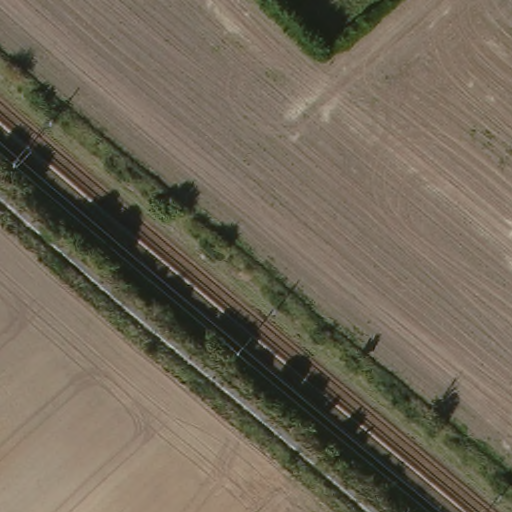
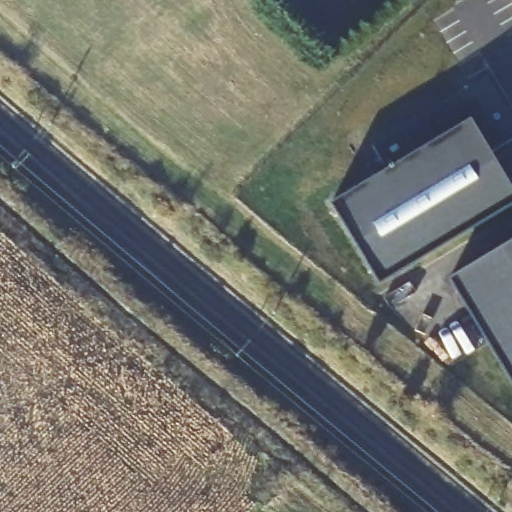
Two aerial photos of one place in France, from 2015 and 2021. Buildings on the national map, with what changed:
new [(384,171),(370,149),(484,79),(512,125),(512,142),(490,155),(512,191),(512,207),(377,289),(327,205),(384,171)]
new [(512,243),(512,368),(456,276),(512,243)]

